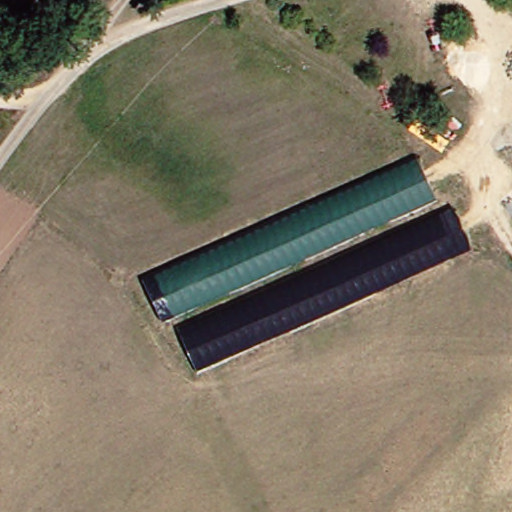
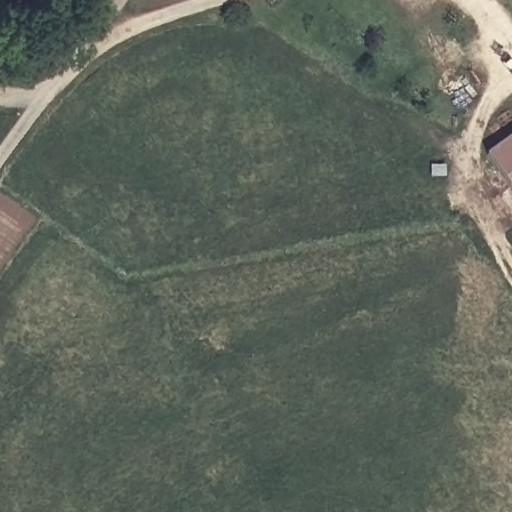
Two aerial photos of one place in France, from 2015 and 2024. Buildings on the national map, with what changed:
new [(487,155),(512,137),(512,189),(487,155)]
demolished [(469,241),(196,367),(136,275),(414,147),(469,241)]

